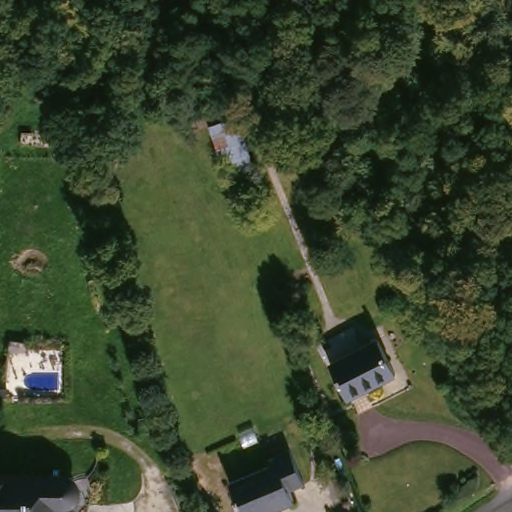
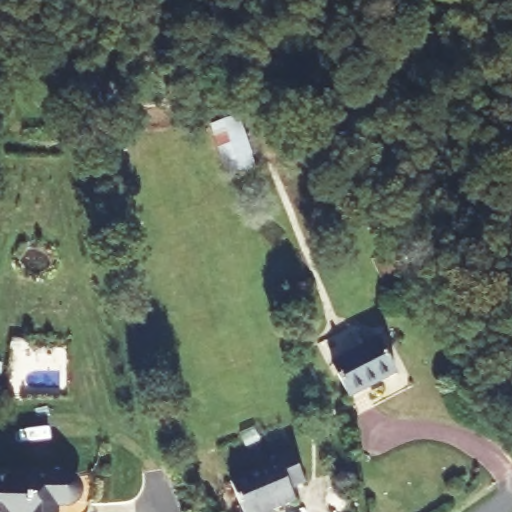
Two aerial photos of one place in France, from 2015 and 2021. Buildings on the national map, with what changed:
unchanged [(235,138),(246,163),(224,172),(214,148),(235,138)]
unchanged [(376,337),(395,373),(349,397),(330,361),(376,337)]
unchanged [(308,489),(292,493),(296,504),(276,510),(275,507),(272,508),(258,512),(245,512),(234,475),(278,463),(276,456),(296,451),(308,489)]
unchanged [(86,496),(72,497),(73,512),(0,512),(0,476),(83,472),(86,496)]

